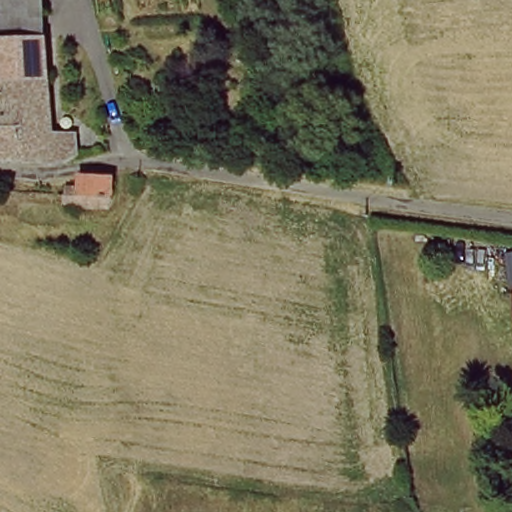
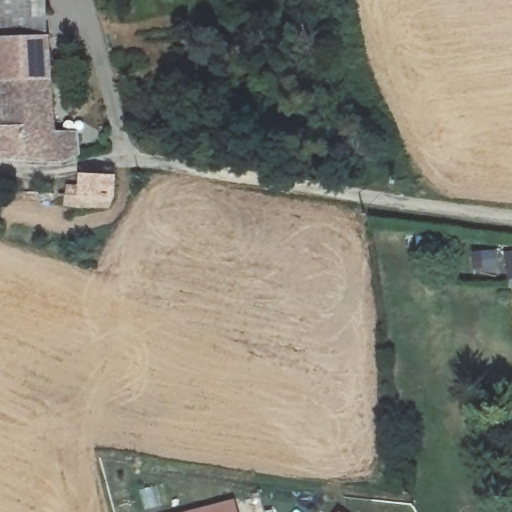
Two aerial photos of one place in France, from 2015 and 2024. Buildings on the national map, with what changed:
unchanged [(49,36),(0,37),(0,0),(48,0),(49,36)]
unchanged [(78,134),(78,163),(58,163),(11,160),(0,159),(0,121),(0,37),(49,36),(53,134),(78,134)]
unchanged [(114,207),(88,207),(89,217),(64,216),(64,210),(63,201),(85,202),(85,187),(113,187),(114,207)]
new [(238,512),(191,512),(235,501),(238,512)]

